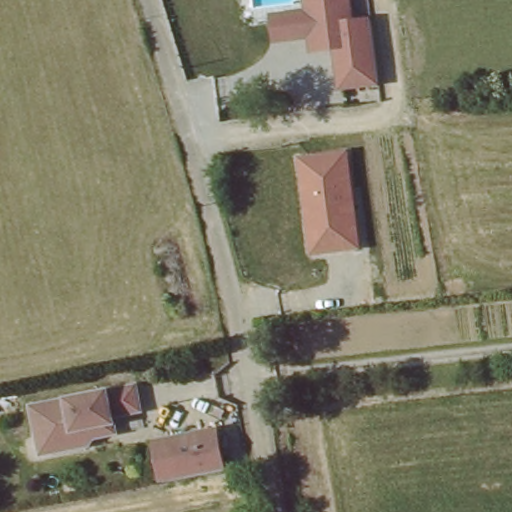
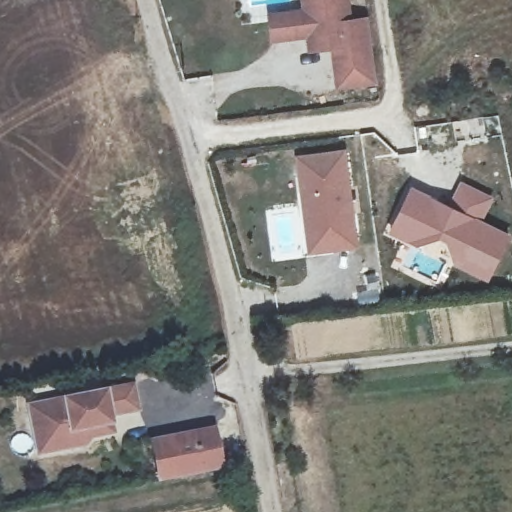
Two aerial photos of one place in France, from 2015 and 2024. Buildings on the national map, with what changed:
unchanged [(348,20),(365,17),(374,86),(334,92),(330,52),(309,55),(303,38),(265,44),(262,18),(302,12),(300,0),(345,0),(348,20)]
unchanged [(357,249),(307,255),(295,155),(345,150),(357,249)]
new [(410,184),(447,201),(460,179),(495,195),(484,220),(512,234),(512,236),(489,281),(454,265),(439,237),(418,247),(388,234),(410,184)]
unchanged [(103,393),(102,383),(132,378),(135,418),(110,420),(112,440),(36,452),(29,401),(103,393)]
unchanged [(152,489),(141,435),(214,426),(220,475),(152,489)]

